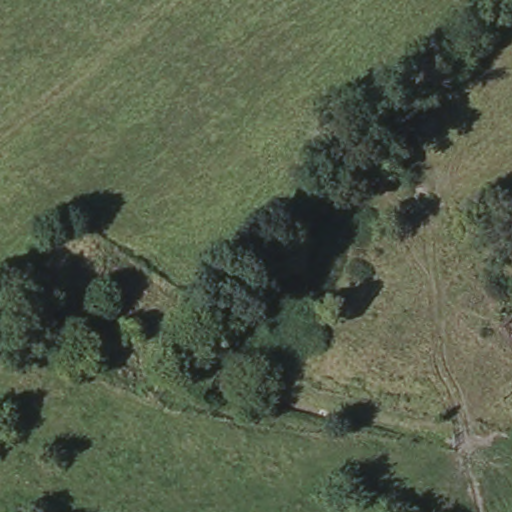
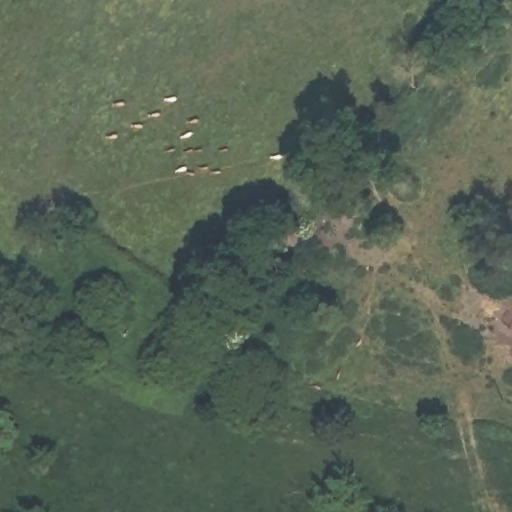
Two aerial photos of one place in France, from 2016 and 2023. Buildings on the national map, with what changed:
unchanged [(197,337),(210,347),(195,368),(181,359),(197,337)]

